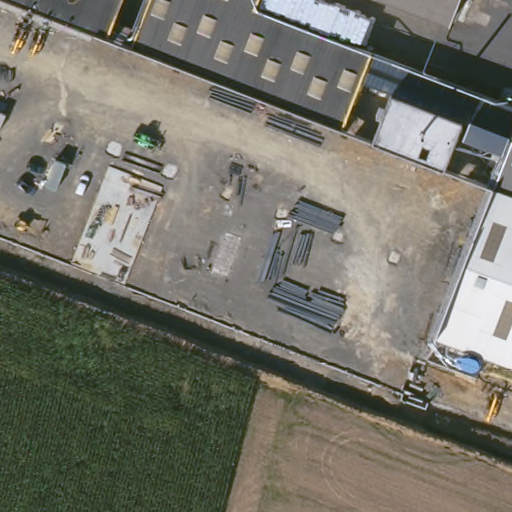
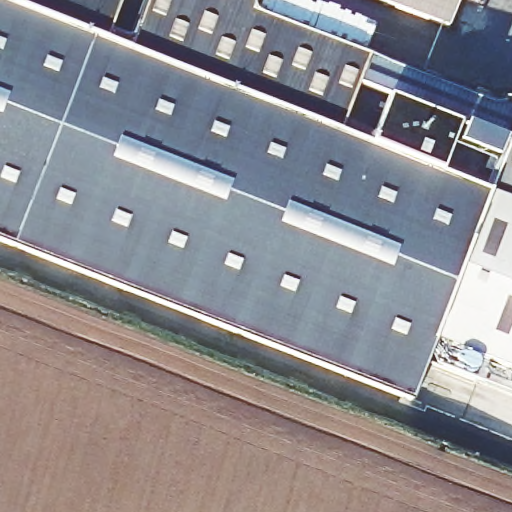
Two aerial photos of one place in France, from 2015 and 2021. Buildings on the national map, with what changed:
demolished [(315,35),(512,104),(512,376),(428,345),(506,140),(463,125),(443,178),(391,157),(413,106),(361,85),(342,135),(125,48),(0,0),(300,0),(323,8),(315,35)]
new [(0,0),(121,0),(106,35),(132,46),(149,0),(257,0),(254,7),(371,52),(512,104),(512,367),(435,337),(410,399),(0,239),(0,0)]
unchanged [(446,29),(370,0),(458,0),(448,24),(446,29)]

